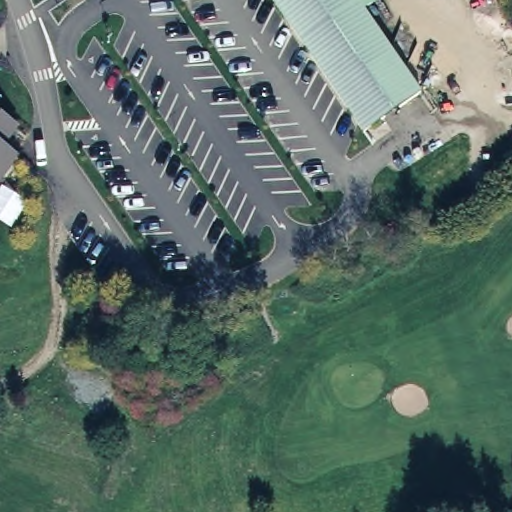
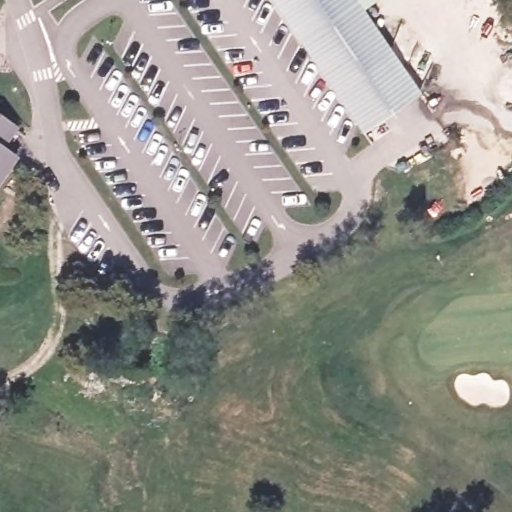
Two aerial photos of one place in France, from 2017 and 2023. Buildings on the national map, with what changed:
unchanged [(357,129),(269,1),(268,0),(354,0),(371,25),(415,91),(357,129)]
unchanged [(378,20),(371,25),(354,0),(365,0),(378,20)]
unchanged [(391,11),(382,17),(370,0),(383,0),(391,11)]
unchanged [(7,155),(17,161),(0,189),(0,118),(17,129),(7,155)]

